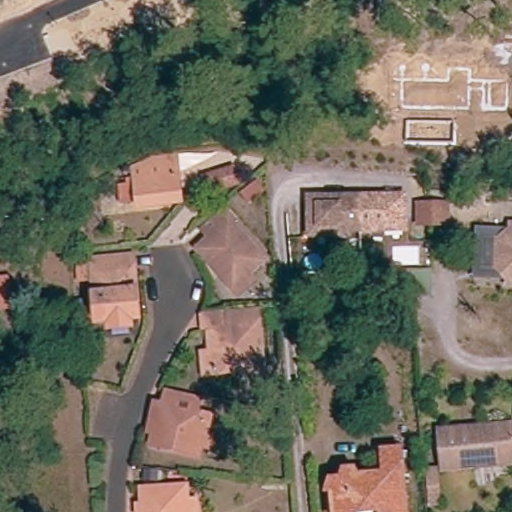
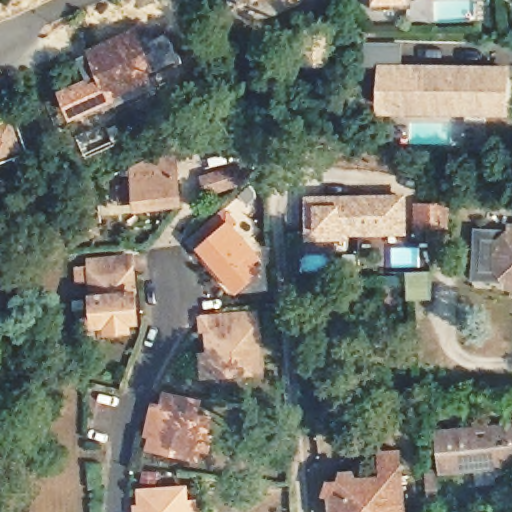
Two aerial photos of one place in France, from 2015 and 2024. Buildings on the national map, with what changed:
new [(252,3),(250,0),(258,0),(252,3)]
new [(408,1),(374,3),(373,0),(408,0),(408,1)]
new [(85,68),(98,62),(94,52),(138,33),(141,39),(152,34),(155,40),(171,33),(184,64),(156,76),(161,87),(104,112),(101,104),(76,115),(66,94),(91,83),(85,68)]
new [(380,110),(377,61),(512,63),(511,113),(380,110)]
new [(21,118),(17,119),(28,149),(1,159),(0,156),(0,124),(20,116),(21,118)]
new [(28,149),(31,155),(0,167),(0,156),(1,159),(28,149)]
unchanged [(178,155),(184,212),(132,218),(129,172),(178,155)]
unchanged [(398,198),(404,198),(405,230),(400,230),(348,232),(348,235),(312,237),(311,201),(398,198)]
unchanged [(416,204),(426,203),(445,202),(447,224),(428,226),(418,227),(416,204)]
unchanged [(263,265),(249,277),(257,285),(238,302),(202,260),(214,250),(209,244),(200,234),(224,213),(234,225),(231,227),(263,265)]
unchanged [(506,275),(489,274),(491,248),(507,249),(512,245),(512,281),(506,275)]
unchanged [(125,328),(91,331),(85,264),(103,263),(128,261),(130,278),(134,327),(125,328)]
unchanged [(432,272),(433,301),(408,302),(407,273),(432,272)]
unchanged [(0,331),(0,276),(9,274),(15,329),(0,331)]
unchanged [(215,354),(212,355),(211,341),(228,339),(227,331),(226,317),(261,313),(267,373),(217,378),(215,354)]
unchanged [(200,406),(197,420),(212,424),(206,451),(203,450),(200,465),(150,454),(154,440),(156,431),(151,430),(156,413),(163,414),(166,399),(200,406)]
unchanged [(492,468),(489,429),(512,427),(512,466),(492,468)]
unchanged [(443,472),(439,433),(489,429),(492,468),(443,472)]
unchanged [(330,496),(333,486),(343,485),(346,477),(356,476),(359,483),(387,480),(384,455),(401,454),(407,512),(337,512),(335,495),(330,496)]
unchanged [(184,490),(185,512),(137,512),(137,492),(184,490)]

